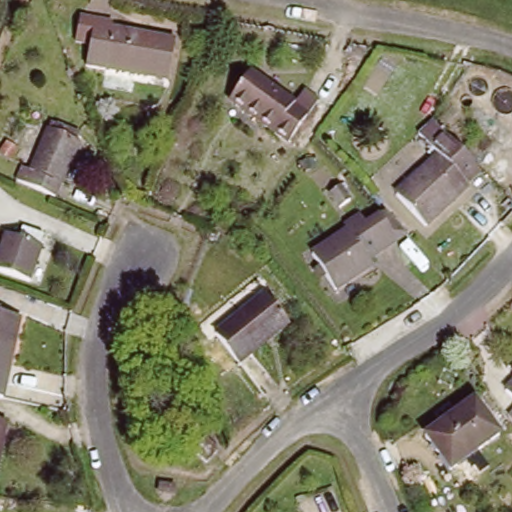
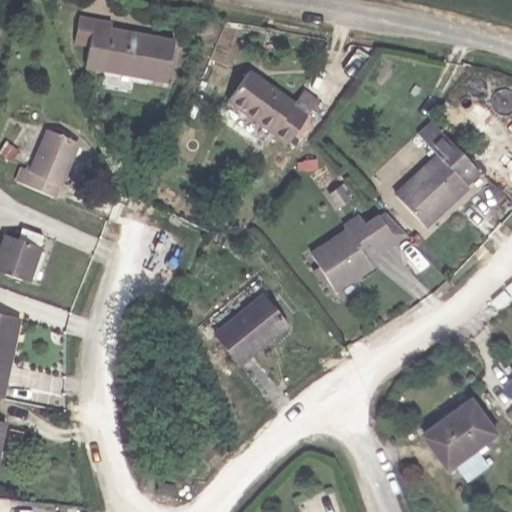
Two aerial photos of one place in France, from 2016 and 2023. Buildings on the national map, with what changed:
unchanged [(117,25),(117,31),(179,43),(172,81),(90,66),(94,45),(80,42),(85,19),(117,25)]
unchanged [(300,106),(309,93),(322,103),(294,144),(232,100),(251,72),(300,106)]
unchanged [(29,164),(38,168),(54,131),(60,133),(64,124),(83,132),(80,141),(84,143),(59,200),(20,183),(29,164)]
unchanged [(467,185),(472,190),(429,227),(402,193),(442,159),(435,152),(422,136),(435,124),(450,139),(478,176),(467,185)]
unchanged [(347,199),(335,207),(326,194),(338,186),(347,199)]
unchanged [(408,235),(370,259),(375,269),(340,292),(317,257),(354,235),(350,228),(365,218),(370,225),(387,213),(408,235)]
unchanged [(27,234),(47,241),(44,251),(45,252),(33,287),(0,276),(12,240),(24,244),(27,234)]
unchanged [(289,327),(243,366),(220,338),(265,299),(289,327)]
unchanged [(4,396),(0,396),(0,321),(17,324),(10,364),(6,382),(4,396)]
unchanged [(500,438),(452,470),(427,434),(475,402),(500,438)]
unchanged [(210,448),(200,460),(189,450),(199,438),(210,448)]

